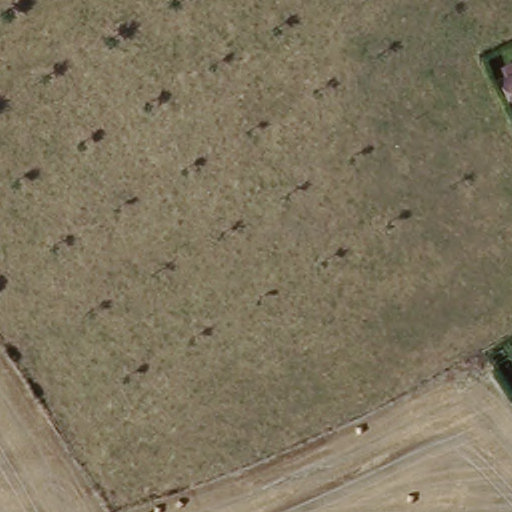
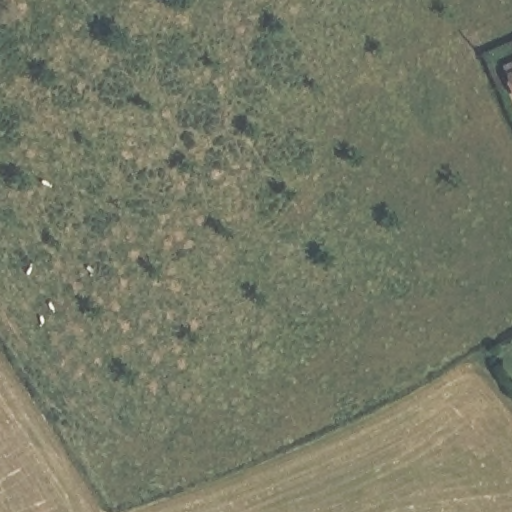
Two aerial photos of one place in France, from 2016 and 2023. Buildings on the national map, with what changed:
unchanged [(512,84),(512,99),(506,87),(512,84)]

